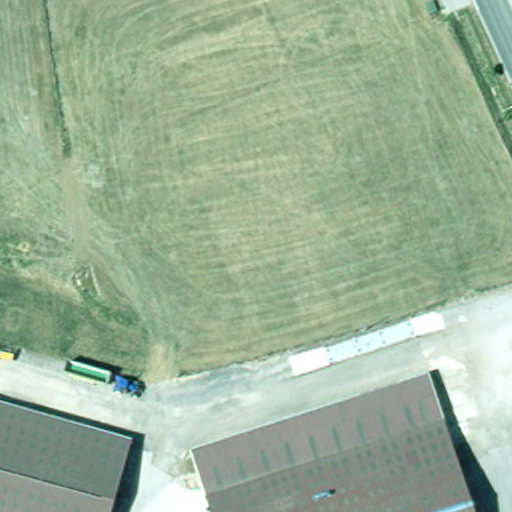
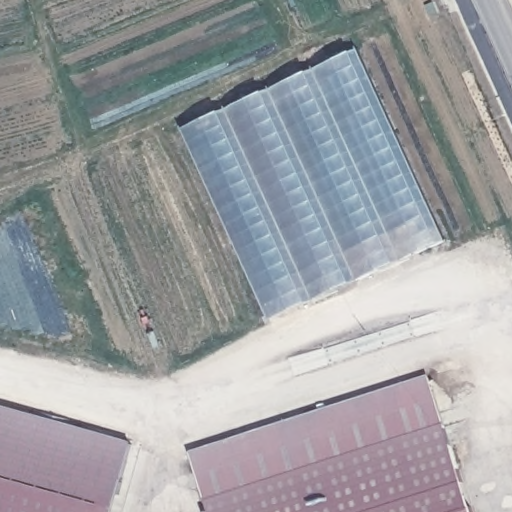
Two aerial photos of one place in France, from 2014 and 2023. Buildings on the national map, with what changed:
new [(447,240),(271,321),(183,130),(358,50),(447,240)]
unchanged [(206,512),(191,463),(428,383),(471,512),(206,512)]
unchanged [(0,512),(0,401),(129,435),(108,512),(0,512)]

